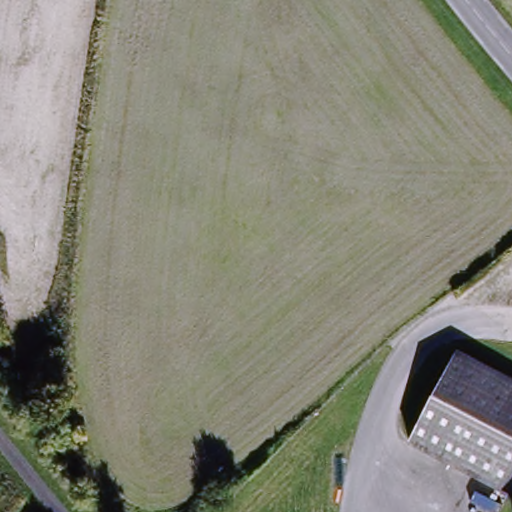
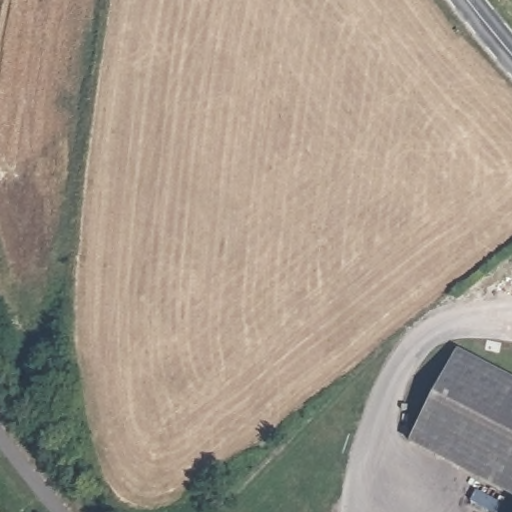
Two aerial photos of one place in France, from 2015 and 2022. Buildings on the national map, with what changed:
unchanged [(512,505),(462,479),(465,474),(409,447),(456,355),(512,384),(512,505)]

